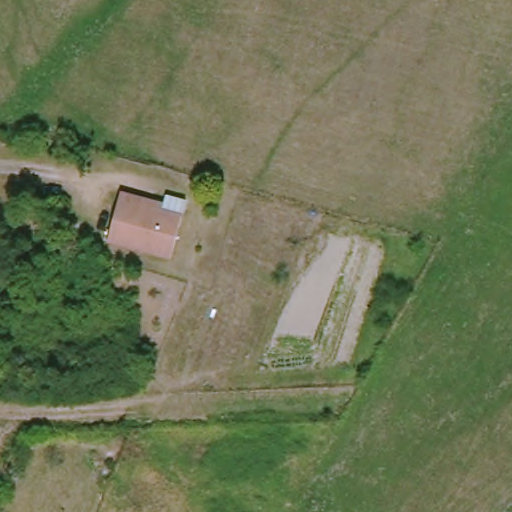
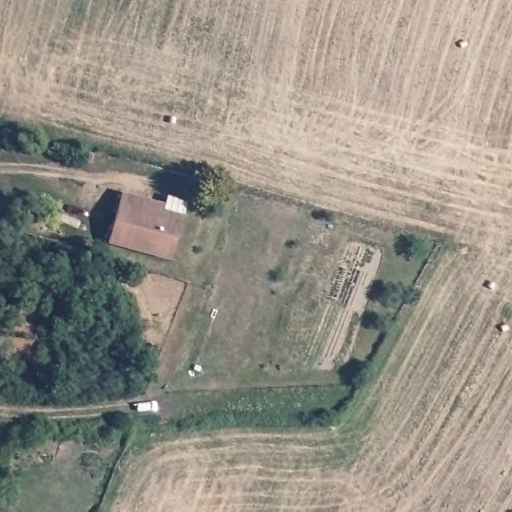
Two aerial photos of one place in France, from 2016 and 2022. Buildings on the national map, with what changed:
unchanged [(170,201),(190,206),(186,218),(175,258),(158,255),(146,251),(113,243),(120,211),(124,199),(125,195),(143,200),(165,205),(162,211),(167,213),(170,201)]

